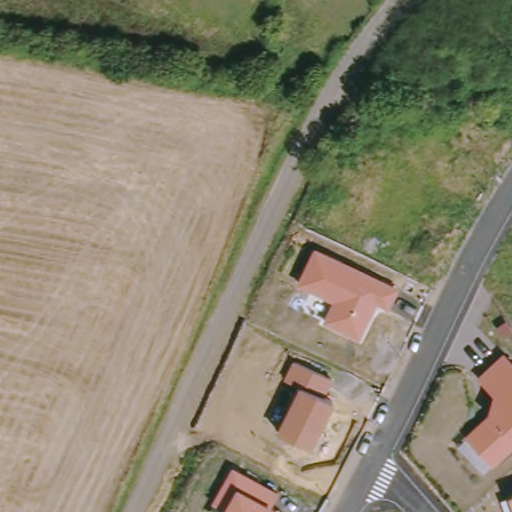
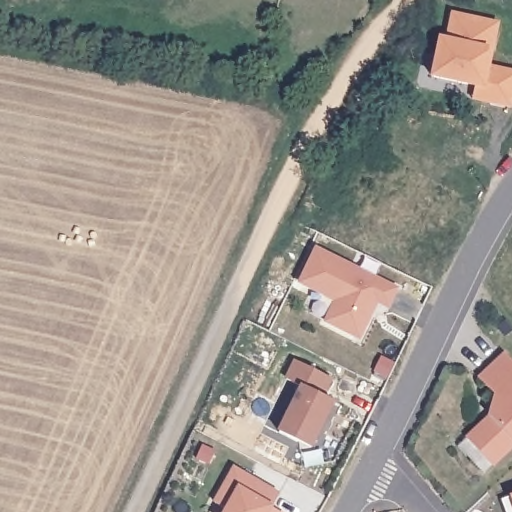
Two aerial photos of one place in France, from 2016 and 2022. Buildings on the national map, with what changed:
new [(475,86),(430,77),(438,37),(445,38),(450,12),(499,21),(491,65),(512,69),(512,108),(472,100),(475,86)]
unchanged [(391,313),(379,307),(363,344),(325,326),(333,304),(300,289),(316,250),(401,290),(391,313)]
unchanged [(512,362),(512,456),(496,471),(467,440),(490,417),(495,396),(479,381),(505,355),(512,362)]
new [(387,356),(393,359),(390,366),(383,363),(387,356)]
unchanged [(332,377),(324,394),(336,399),(310,452),(276,432),(295,394),(279,384),(295,358),(332,377)]
unchanged [(272,507),(280,512),(223,512),(224,512),(211,503),(234,465),(280,493),(272,507)]
unchanged [(506,512),(502,501),(512,497),(512,512),(506,512)]

